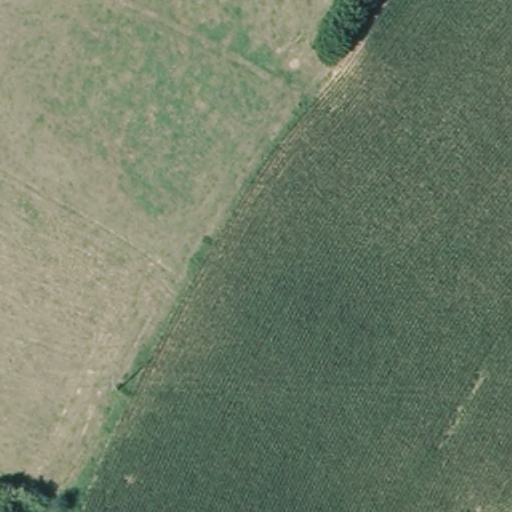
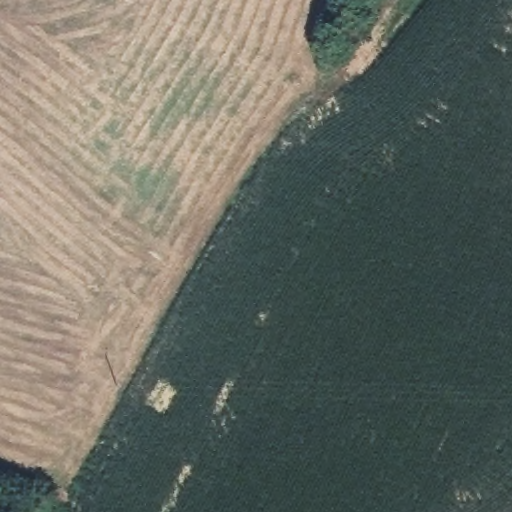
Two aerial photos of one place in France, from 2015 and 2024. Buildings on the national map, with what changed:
[]

